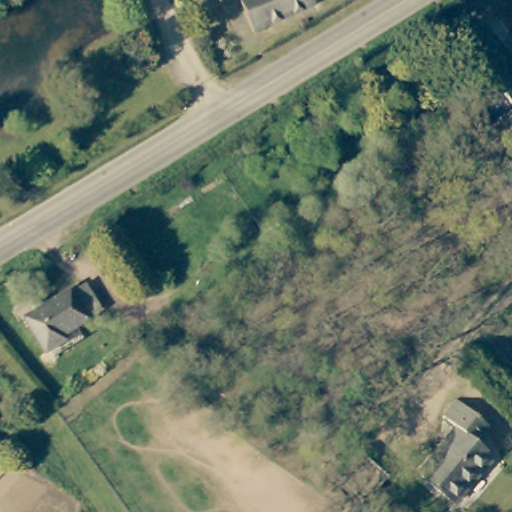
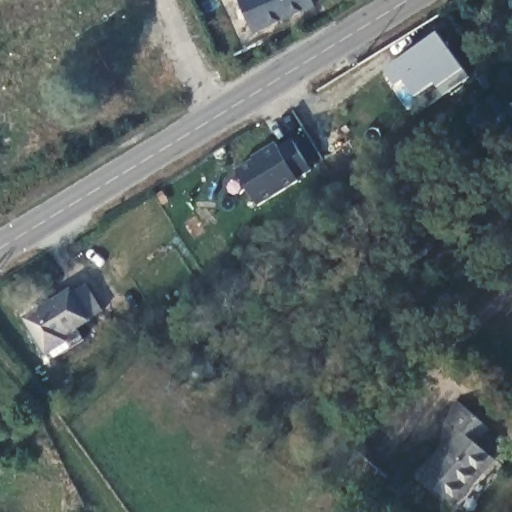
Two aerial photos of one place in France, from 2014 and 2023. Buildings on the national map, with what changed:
unchanged [(254,30),(241,0),(313,0),(315,4),(254,30)]
new [(438,34),(464,69),(471,77),(443,96),(439,89),(436,85),(415,98),(403,81),(396,86),(384,70),(438,34)]
unchanged [(512,107),(512,118),(508,111),(512,107)]
new [(312,172),(298,181),(256,205),(231,167),(235,165),(275,143),(276,148),(293,140),(312,172)]
unchanged [(32,305),(42,300),(45,306),(71,291),(72,293),(86,285),(103,311),(89,320),(62,337),(65,342),(44,354),(23,320),(36,311),(32,305)]
unchanged [(494,452),(454,497),(420,468),(457,423),(444,411),(457,396),(484,418),(472,433),(494,452)]
unchanged [(4,451),(2,455),(0,456),(0,446),(4,451)]
unchanged [(392,474),(374,496),(369,492),(362,497),(335,474),(359,446),(392,474)]

